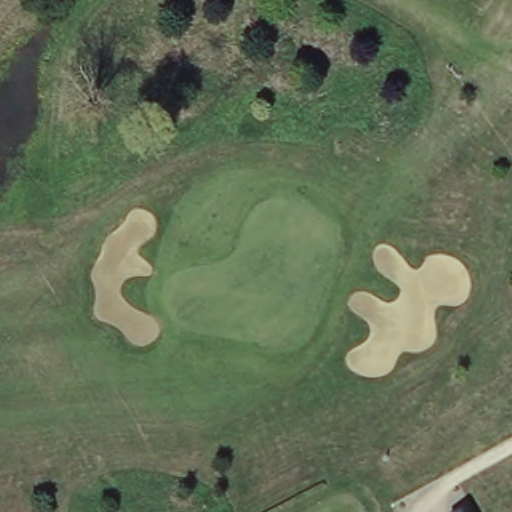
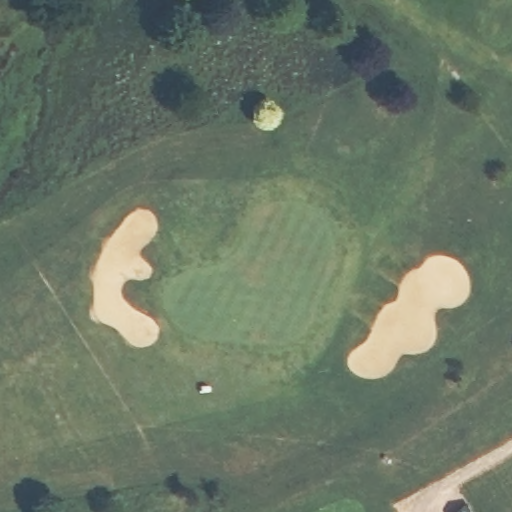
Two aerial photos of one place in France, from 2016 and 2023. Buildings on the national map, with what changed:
unchanged [(473,512),(452,512),(469,503),(473,512)]

